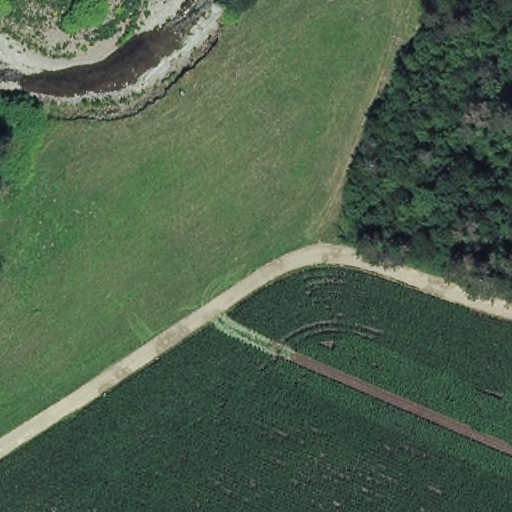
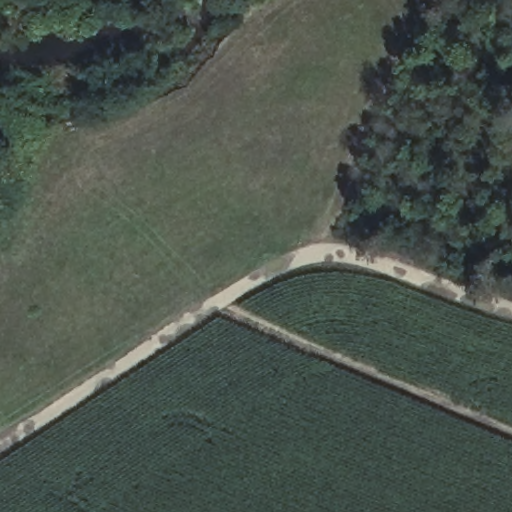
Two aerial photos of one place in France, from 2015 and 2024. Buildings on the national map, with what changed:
[]

